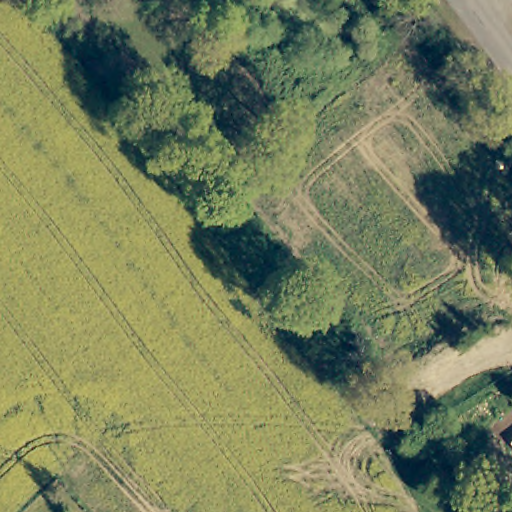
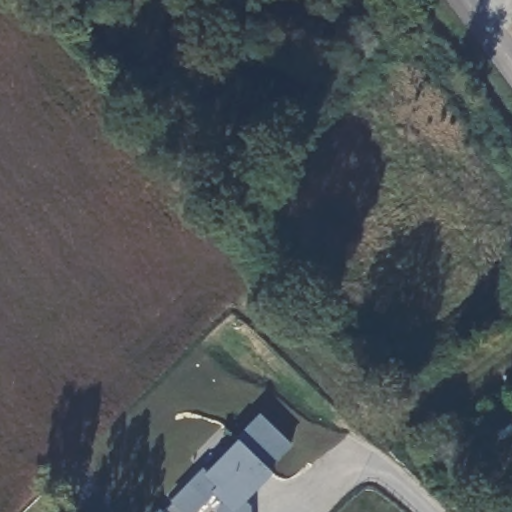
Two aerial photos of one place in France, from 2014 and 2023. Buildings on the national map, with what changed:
new [(204,469),(209,474),(240,442),(237,439),(261,414),(292,444),(269,468),(273,473),(262,484),(245,501),(250,506),(251,512),(220,512),(220,509),(227,502),(216,491),(196,512),(168,512),(165,509),(175,501),(204,469)]

